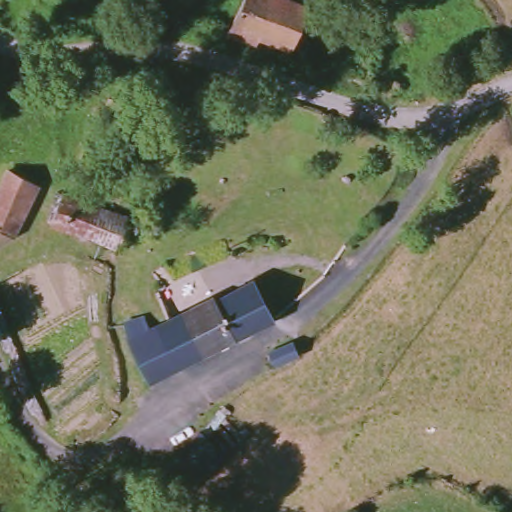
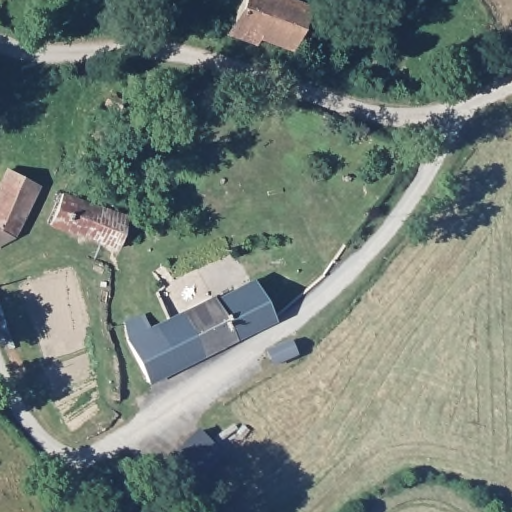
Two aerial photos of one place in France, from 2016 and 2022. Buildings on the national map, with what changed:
unchanged [(297,51),(270,40),(266,48),(236,36),(249,0),(283,0),(312,10),(311,16),(297,51)]
unchanged [(0,250),(0,212),(16,182),(49,199),(43,211),(24,244),(0,250)]
unchanged [(125,249),(76,226),(69,234),(53,226),(70,195),(132,219),(125,249)]
unchanged [(148,390),(127,347),(128,329),(145,321),(152,335),(169,325),(161,307),(182,295),(191,310),(214,297),(216,301),(251,284),(273,327),(148,390)]
unchanged [(296,377),(271,380),(271,377),(270,365),(295,363),(296,377)]
unchanged [(203,433),(229,459),(187,496),(164,472),(203,433)]

